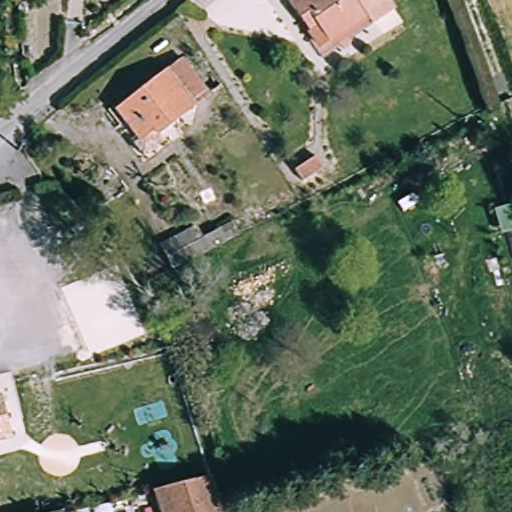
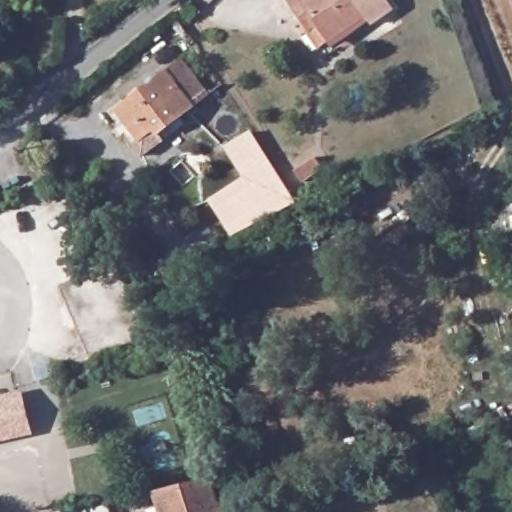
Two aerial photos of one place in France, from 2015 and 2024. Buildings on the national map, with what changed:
unchanged [(386,0),(390,6),(369,21),(363,12),(324,37),(314,21),(305,26),(299,17),(288,0),(386,0)]
unchanged [(197,108),(148,147),(121,113),(170,74),(197,108)]
new [(251,130),(297,203),(231,236),(208,200),(243,177),(225,147),(251,130)]
unchanged [(304,185),(297,175),(318,161),(325,171),(304,185)]
unchanged [(494,210),(512,205),(512,232),(501,235),(494,210)]
unchanged [(171,263),(167,254),(203,235),(211,251),(182,266),(178,260),(171,263)]
unchanged [(11,441),(0,444),(0,397),(2,396),(11,441)]
unchanged [(212,475),(223,511),(223,512),(159,512),(152,490),(212,475)]

